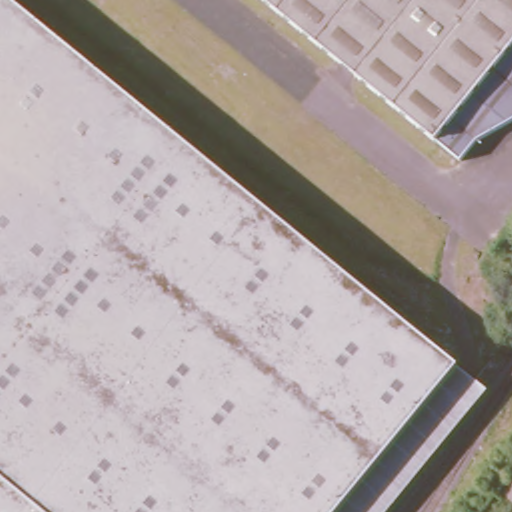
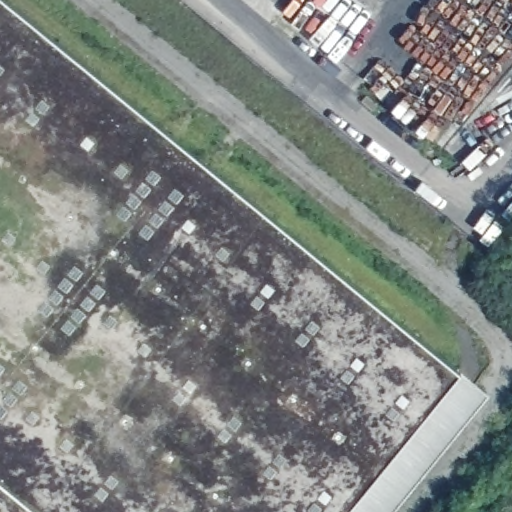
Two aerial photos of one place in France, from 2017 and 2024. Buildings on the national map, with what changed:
unchanged [(347,512),(0,512),(0,0),(9,0),(462,371),(347,512)]
demolished [(467,141),(456,155),(266,0),(512,0),(512,112),(467,141)]
unchanged [(393,512),(347,512),(462,371),(490,393),(393,512)]

